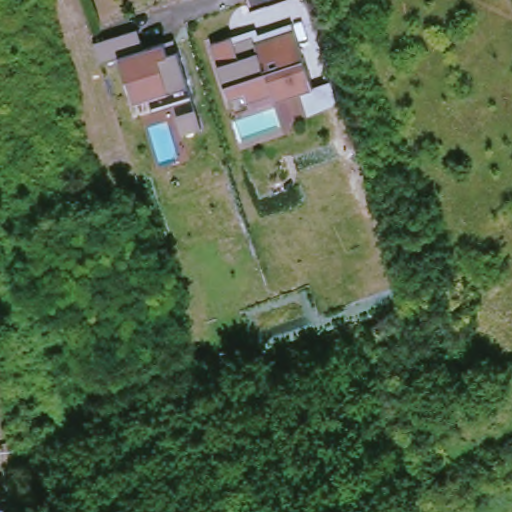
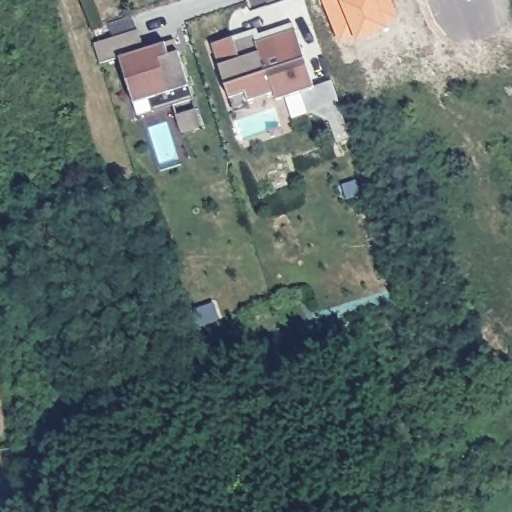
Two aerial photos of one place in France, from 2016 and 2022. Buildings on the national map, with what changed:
new [(396,19),(351,36),(350,33),(336,38),(322,0),(389,0),(396,19)]
unchanged [(258,31),(260,36),(294,25),(316,87),(333,82),(343,106),(311,117),(301,93),(277,101),(274,94),(248,102),(250,108),(234,113),(213,45),(258,31)]
unchanged [(144,50),(176,42),(179,54),(194,100),(154,113),(150,99),(134,104),(123,59),(100,65),(94,45),(138,32),(144,50)]

